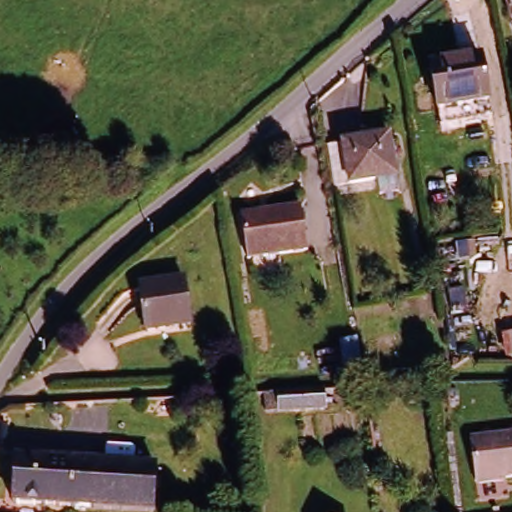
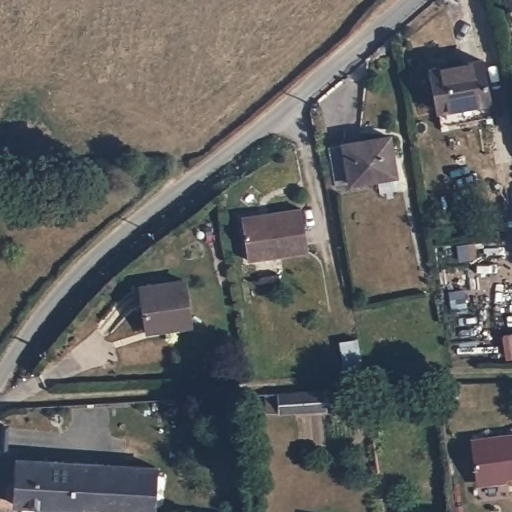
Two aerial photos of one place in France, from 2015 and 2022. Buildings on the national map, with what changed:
unchanged [(512,0),(512,22),(506,23),(500,0),(512,0)]
unchanged [(432,65),(483,58),(490,105),(438,112),(432,65)]
unchanged [(390,135),(397,172),(337,184),(330,146),(390,135)]
unchanged [(240,219),(300,211),(307,252),(245,260),(240,219)]
unchanged [(143,290),(184,284),(190,325),(149,332),(143,290)]
unchanged [(512,334),(512,359),(505,360),(501,335),(512,334)]
unchanged [(335,411),(266,417),(264,390),(330,385),(335,411)]
unchanged [(512,429),(512,473),(477,475),(474,432),(512,429)]
unchanged [(16,458),(157,469),(154,512),(74,512),(13,507),(16,458)]

